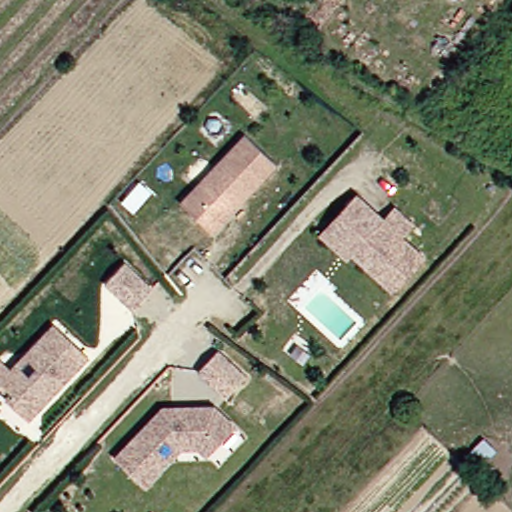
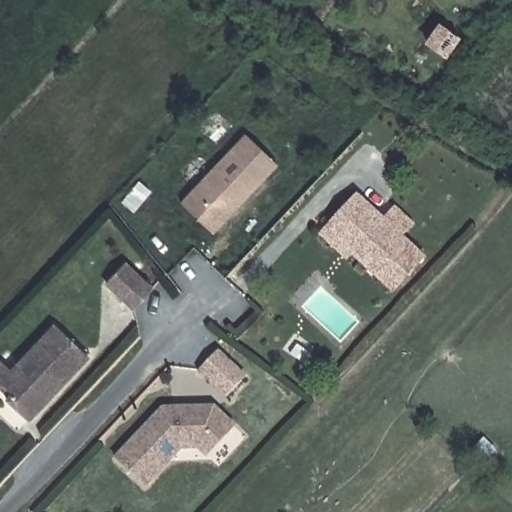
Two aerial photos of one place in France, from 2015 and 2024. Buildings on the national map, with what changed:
unchanged [(211,233),(180,204),(244,135),(275,164),(242,200),(222,222),(211,233)]
unchanged [(352,255),(347,261),(321,237),(331,225),(357,198),(383,222),(395,210),(413,228),(402,239),(425,260),(394,294),(352,255)]
unchanged [(133,309),(106,283),(125,264),(152,290),(133,309)]
unchanged [(11,371),(54,325),(87,357),(27,421),(6,400),(12,394),(0,382),(0,361),(11,371)]
unchanged [(228,394),(201,368),(219,349),(247,374),(228,394)]
unchanged [(204,454),(195,445),(178,446),(142,484),(112,457),(160,406),(210,404),(232,424),(218,439),(204,454)]

